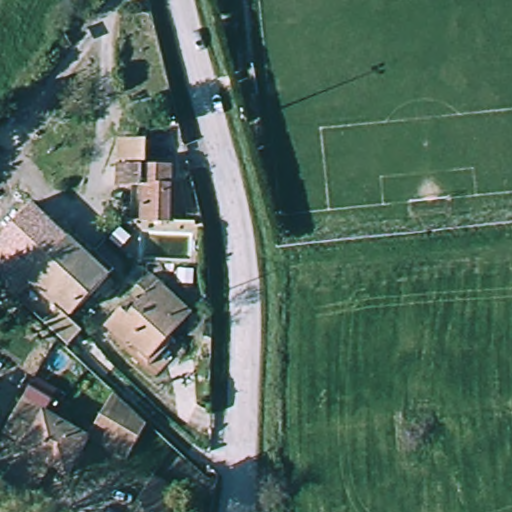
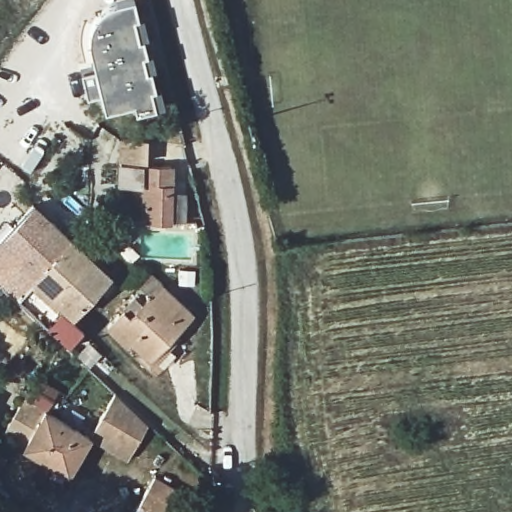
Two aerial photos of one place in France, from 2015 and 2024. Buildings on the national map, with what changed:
new [(143,16),(148,36),(144,37),(147,54),(152,52),(155,68),(152,69),(156,87),(160,87),(164,105),(136,111),(134,102),(105,110),(100,91),(88,94),(82,70),(95,66),(89,41),(90,31),(93,20),(99,12),(104,7),(110,4),(125,0),(136,0),(139,17),(143,16)]
unchanged [(149,141),(150,165),(181,164),(183,225),(142,225),(141,190),(117,190),(117,140),(149,141)]
demolished [(12,197),(0,215),(0,188),(12,197)]
unchanged [(96,255),(113,271),(81,307),(57,330),(0,278),(0,249),(42,204),(96,255)]
unchanged [(195,305),(175,329),(182,335),(156,365),(142,351),(148,345),(136,335),(131,340),(111,323),(129,302),(141,312),(168,281),(195,305)]
unchanged [(155,430),(138,458),(94,433),(115,395),(155,430)]
unchanged [(94,437),(72,477),(48,463),(51,459),(25,445),(46,409),(94,437)]
new [(435,420),(435,438),(407,440),(406,424),(435,420)]
unchanged [(157,474),(180,490),(191,498),(182,512),(131,512),(157,474)]

